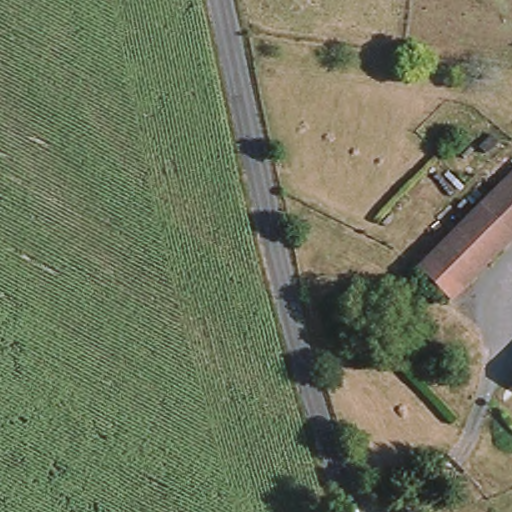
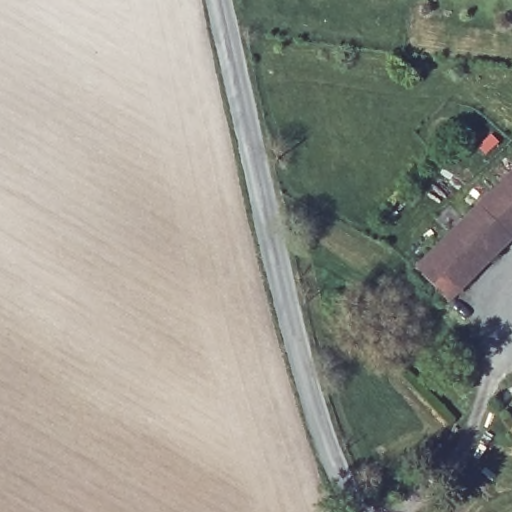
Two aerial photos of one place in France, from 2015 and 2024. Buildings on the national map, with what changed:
unchanged [(486,212),(512,185),(512,240),(486,212)]
unchanged [(432,268),(486,212),(512,240),(512,249),(467,300),(432,268)]

